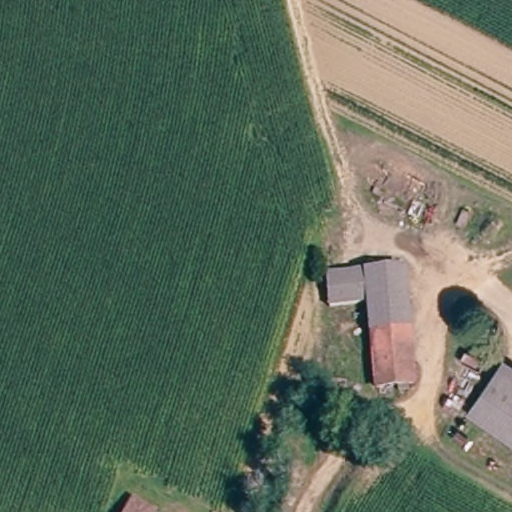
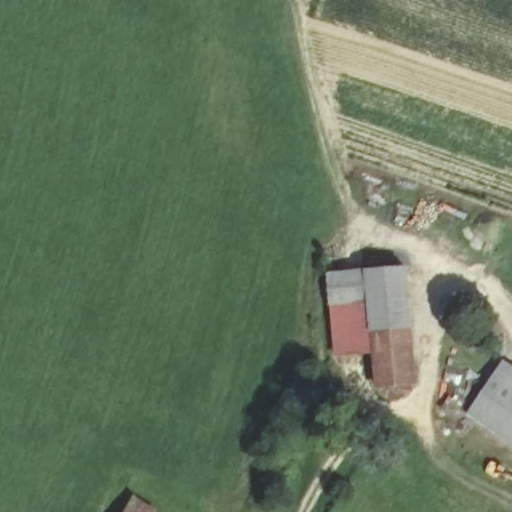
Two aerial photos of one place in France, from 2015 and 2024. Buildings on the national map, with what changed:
unchanged [(412,380),(372,386),(363,301),(321,305),(318,271),(397,265),(412,380)]
new [(363,301),(369,354),(337,358),(331,304),(363,301)]
unchanged [(493,366),(512,377),(512,445),(461,410),(493,366)]
unchanged [(167,512),(115,512),(121,502),(126,493),(167,512)]

